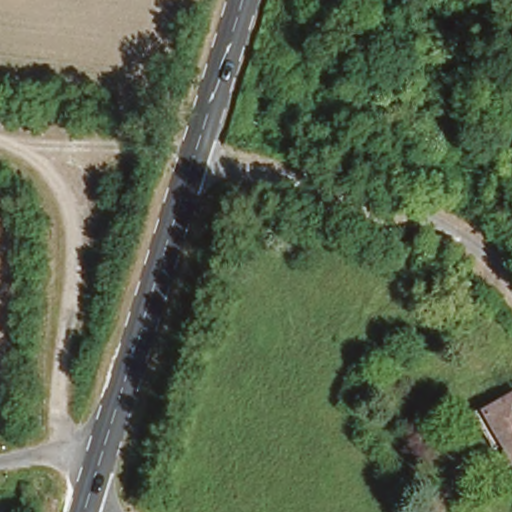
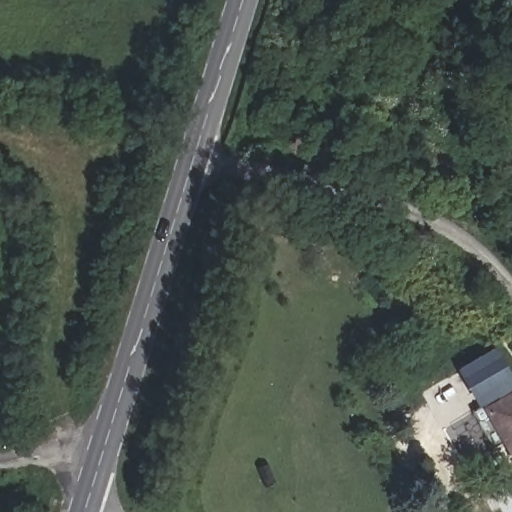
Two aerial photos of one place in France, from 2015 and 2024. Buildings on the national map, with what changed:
new [(479,407),(459,369),(496,348),(512,375),(512,388),(482,405),(479,407)]
unchanged [(482,405),(512,388),(512,455),(511,456),(482,405)]

